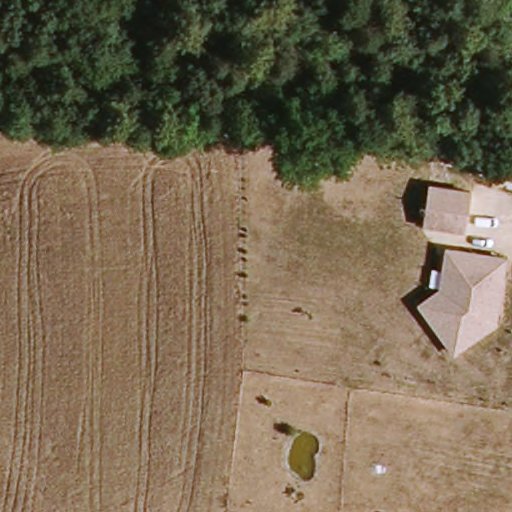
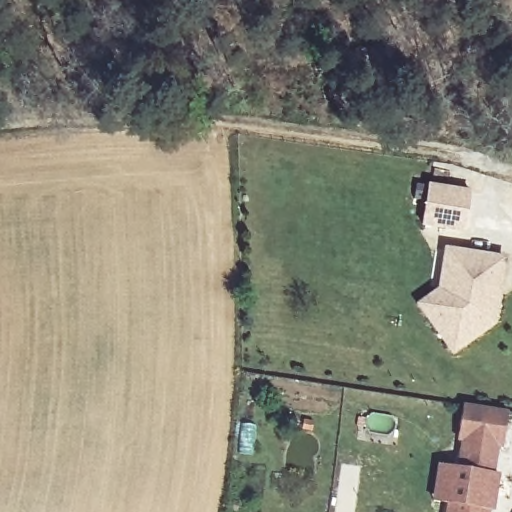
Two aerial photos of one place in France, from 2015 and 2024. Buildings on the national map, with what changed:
unchanged [(478,191),(473,229),(430,224),(437,185),(478,191)]
unchanged [(512,256),(512,269),(504,321),(464,351),(439,316),(430,304),(450,289),(455,248),(462,249),(506,255),(512,256)]
new [(432,501),(438,463),(457,466),(462,441),(458,440),(464,405),(509,412),(504,448),(498,448),(495,475),(502,476),(495,512),(490,512),(447,512),(448,503),(432,501)]

